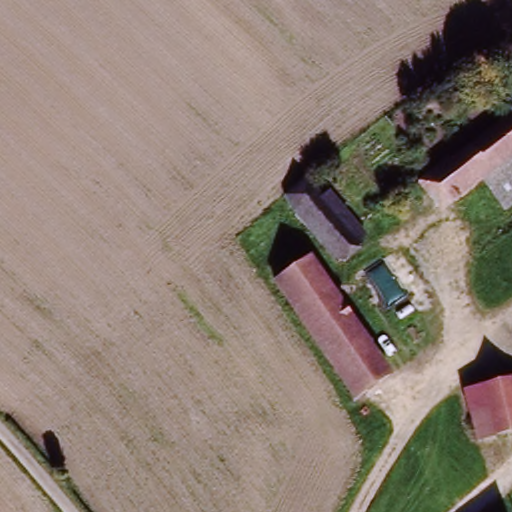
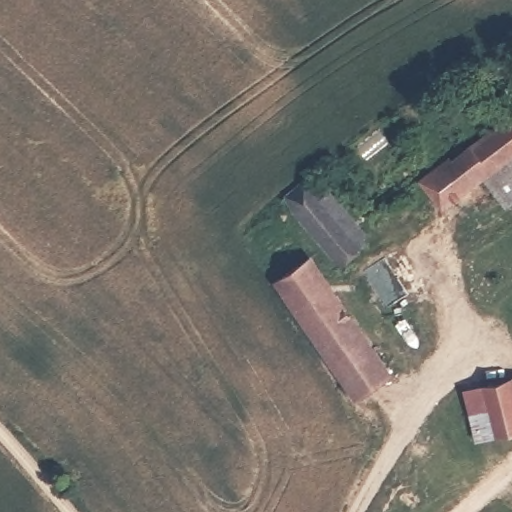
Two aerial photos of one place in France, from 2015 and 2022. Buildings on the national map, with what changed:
unchanged [(437,205),(416,177),(447,153),(454,159),(512,111),(512,151),(475,177),(437,205)]
unchanged [(512,151),(512,196),(497,206),(475,177),(512,151)]
unchanged [(330,192),(367,237),(360,242),(340,260),(280,197),(303,181),(321,200),(330,192)]
unchanged [(274,281),(312,258),(391,375),(356,400),(274,281)]
unchanged [(512,381),(512,433),(480,441),(468,392),(512,381)]

